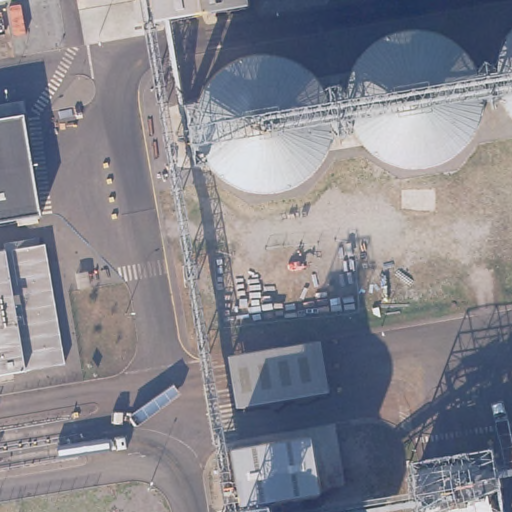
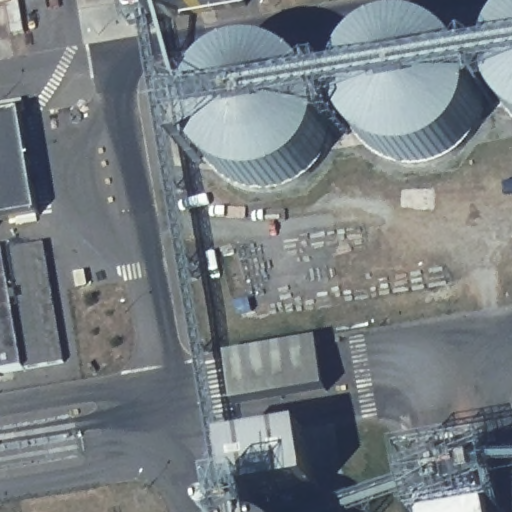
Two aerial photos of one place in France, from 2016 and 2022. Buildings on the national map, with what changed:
unchanged [(151,23),(148,0),(248,0),(248,5),(151,23)]
unchanged [(23,114),(41,218),(0,225),(0,118),(23,114)]
unchanged [(5,250),(43,243),(66,365),(0,378),(0,251),(5,250)]
unchanged [(320,343),(329,395),(237,411),(228,356),(320,343)]
unchanged [(486,458),(492,512),(424,512),(416,466),(486,458)]

